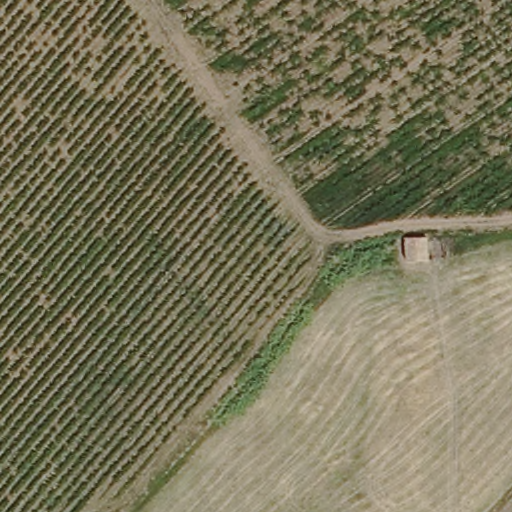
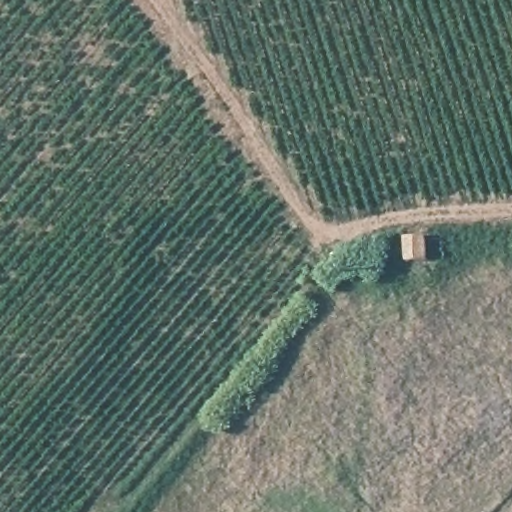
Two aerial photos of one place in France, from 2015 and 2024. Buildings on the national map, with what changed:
unchanged [(420,236),(422,255),(403,258),(400,239),(420,236)]

